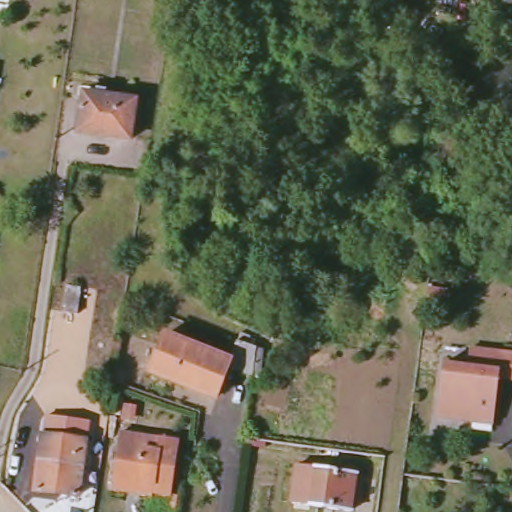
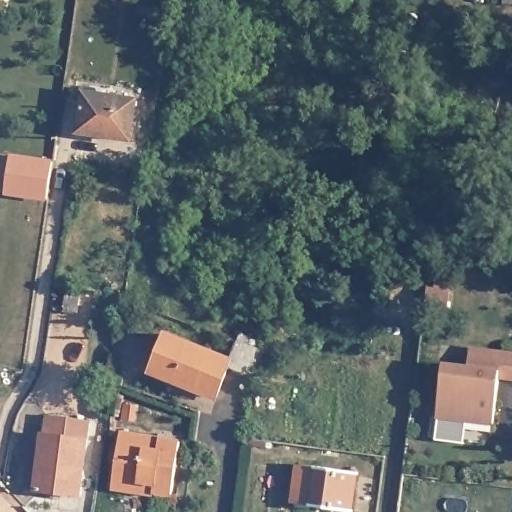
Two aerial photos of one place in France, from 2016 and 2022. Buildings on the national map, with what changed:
unchanged [(136,107),(130,146),(104,144),(105,136),(80,133),(85,99),(136,107)]
new [(5,194),(11,153),(54,160),(47,200),(5,194)]
unchanged [(67,301),(64,325),(51,322),(55,298),(67,301)]
unchanged [(149,374),(167,330),(229,355),(240,341),(267,353),(257,378),(233,365),(222,402),(149,374)]
unchanged [(487,431),(477,430),(473,425),(437,420),(443,367),(467,370),(470,352),(502,355),(512,357),(512,384),(498,382),(492,427),(487,431)]
unchanged [(86,418),(77,493),(38,489),(44,432),(49,433),(50,415),(86,418)]
unchanged [(123,431),(179,439),(171,495),(154,492),(155,481),(140,480),(140,485),(115,483),(123,431)]
unchanged [(377,473),(372,511),(297,502),(302,464),(377,473)]

